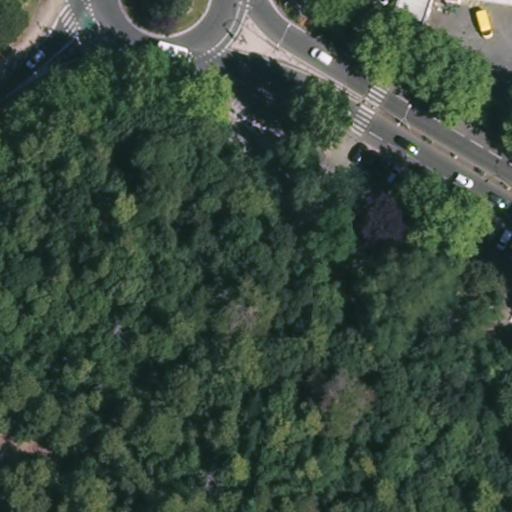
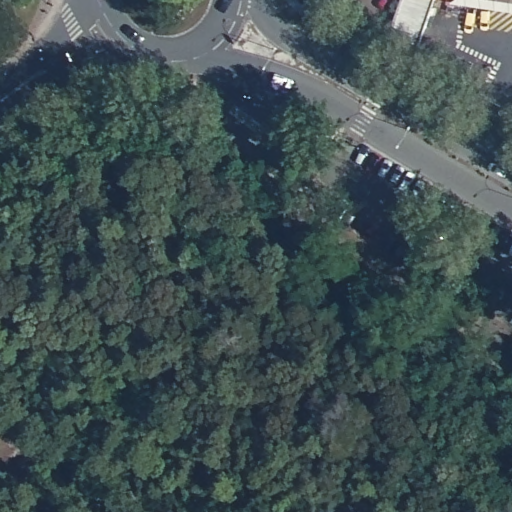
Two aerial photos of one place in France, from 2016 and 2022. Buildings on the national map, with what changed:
unchanged [(425,55),(388,46),(399,0),(435,0),(425,55)]
unchanged [(489,0),(512,0),(512,4),(489,0)]

